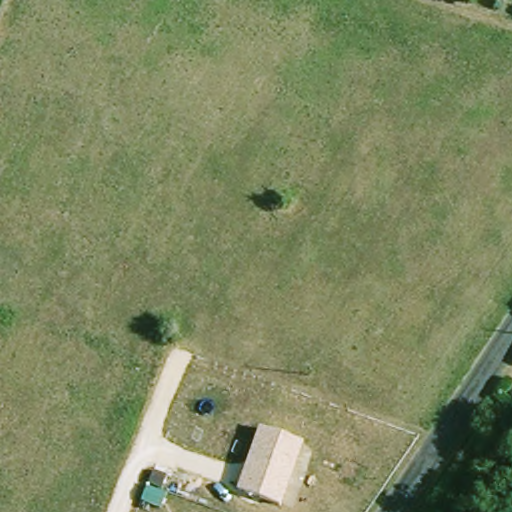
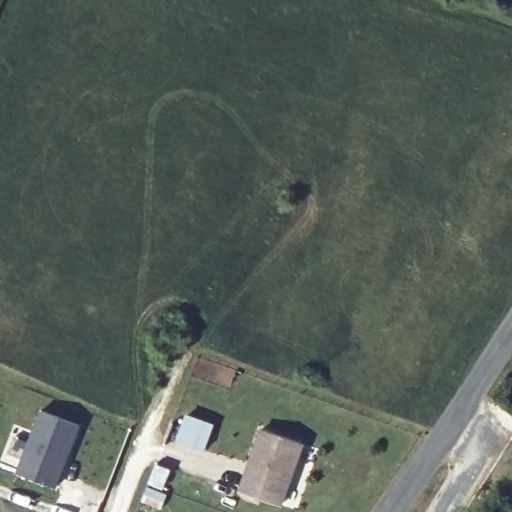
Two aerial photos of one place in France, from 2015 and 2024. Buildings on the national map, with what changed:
new [(43,411),(80,426),(56,488),(19,473),(43,411)]
unchanged [(303,444),(280,508),(236,493),(258,429),(303,444)]

